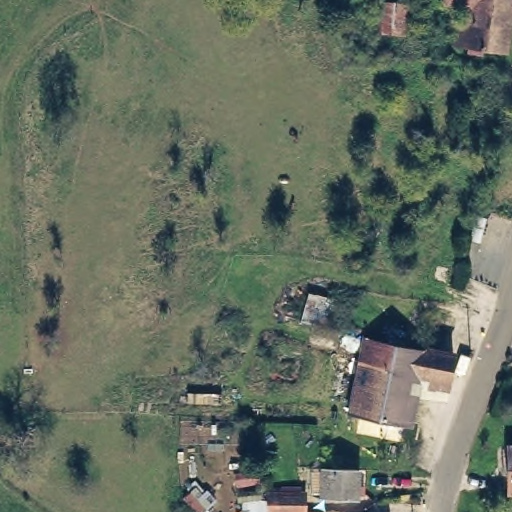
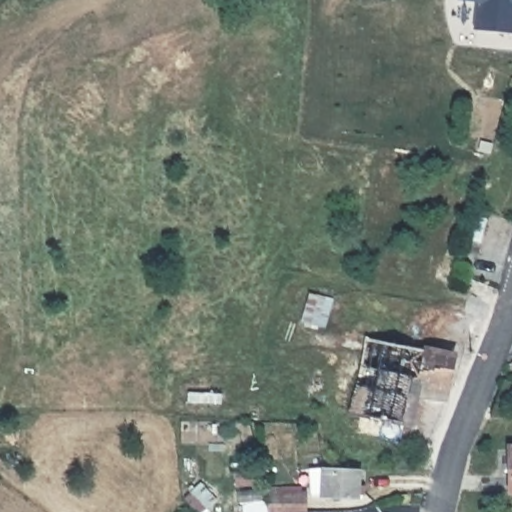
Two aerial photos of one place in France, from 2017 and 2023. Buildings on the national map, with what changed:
unchanged [(507,54),(457,47),(463,0),(511,0),(507,54)]
unchanged [(433,351),(460,358),(454,385),(422,378),(411,424),(354,408),(359,391),(345,387),(352,365),(361,333),(372,336),(380,338),(433,351)]
unchanged [(512,493),(509,493),(506,448),(512,448),(512,493)]
unchanged [(360,469),(357,482),(365,484),(364,495),(355,493),(355,500),(319,493),(322,463),(325,463),(360,469)]
unchanged [(273,496),(274,512),(245,512),(242,499),(273,496)]

